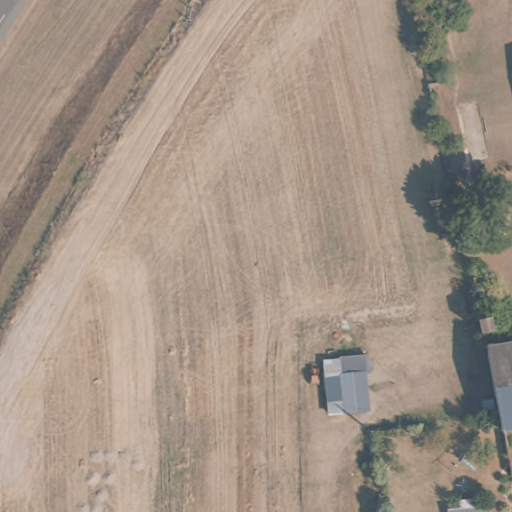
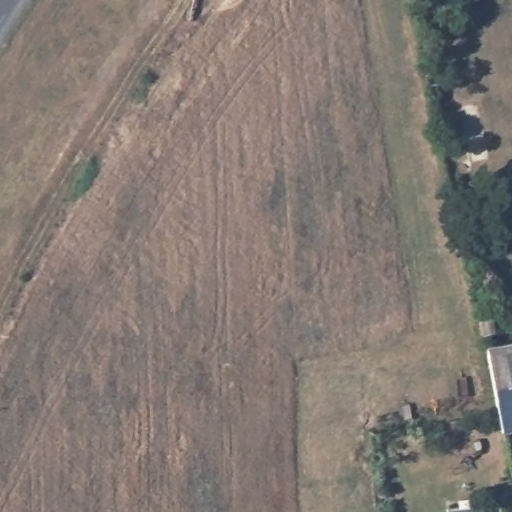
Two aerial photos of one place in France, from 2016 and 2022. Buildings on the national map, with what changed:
unchanged [(512,429),(501,431),(496,412),(482,349),(512,343),(512,429)]
demolished [(369,355),(369,413),(342,414),(341,400),(324,401),(323,377),(340,375),(339,358),(369,355)]
unchanged [(485,508),(485,512),(463,512),(468,511),(485,508)]

